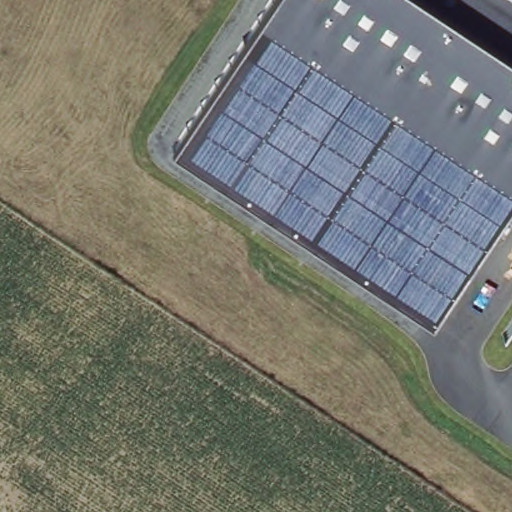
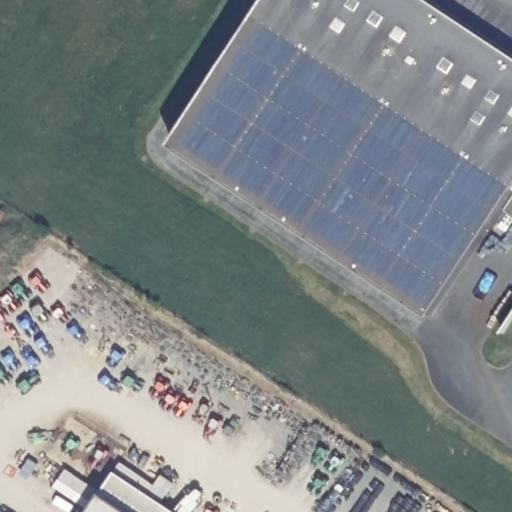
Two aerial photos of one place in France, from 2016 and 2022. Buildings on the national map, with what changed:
unchanged [(431,313),(174,144),(268,0),(512,0),(512,193),(431,313)]
new [(177,512),(88,512),(115,471),(177,512)]

